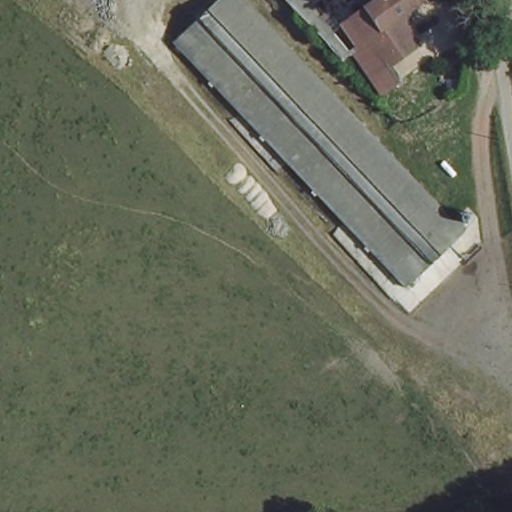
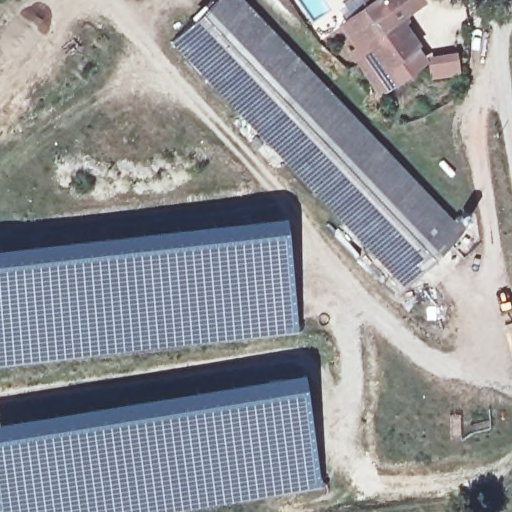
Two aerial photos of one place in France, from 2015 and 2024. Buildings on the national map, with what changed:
unchanged [(404,285),(223,90),(175,39),(216,0),(248,0),(464,231),(404,285)]
unchanged [(414,30),(389,52),(396,65),(378,74),(347,35),(357,25),(348,9),(361,0),(397,0),(395,1),(414,30)]
new [(297,331),(0,364),(0,245),(283,214),(297,331)]
new [(158,512),(0,512),(0,420),(302,371),(321,486),(158,512)]

